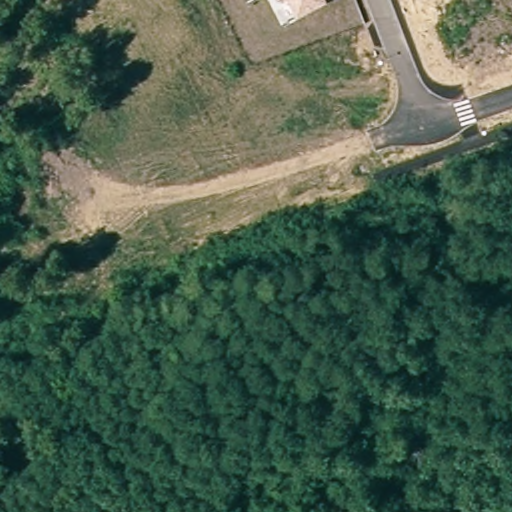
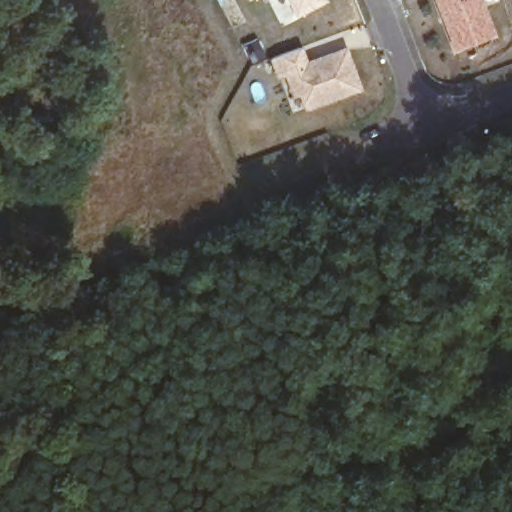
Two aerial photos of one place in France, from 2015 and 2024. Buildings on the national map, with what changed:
unchanged [(288,0),(326,0),(328,3),(297,18),(288,0)]
new [(458,55),(437,0),(480,0),(496,40),(458,55)]
new [(302,52),(308,69),(347,55),(361,93),(309,113),(303,97),(296,100),(288,78),(281,81),(274,63),(302,52)]

